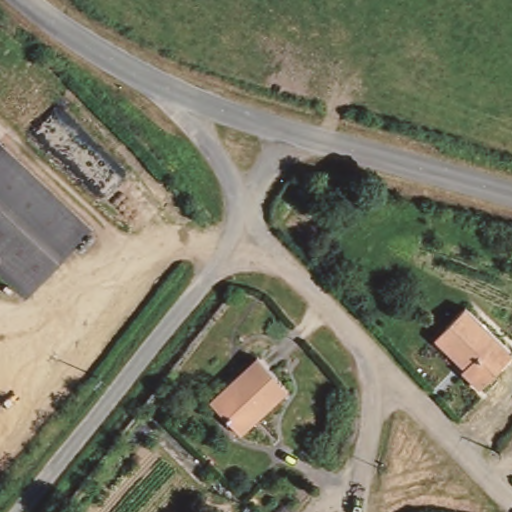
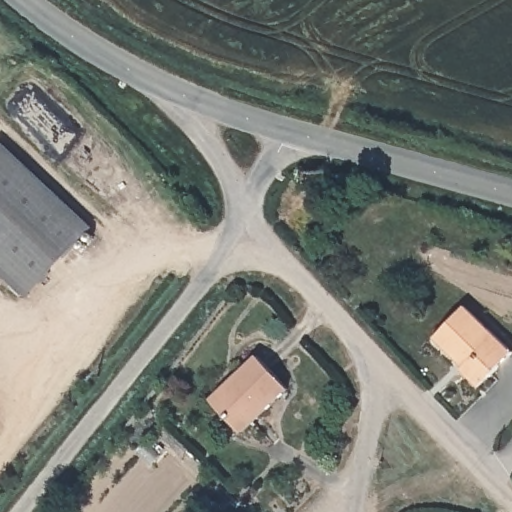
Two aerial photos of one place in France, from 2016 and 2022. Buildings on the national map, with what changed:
unchanged [(21,299),(0,278),(0,146),(87,230),(21,299)]
unchanged [(462,309),(512,358),(512,359),(478,392),(460,374),(465,369),(434,337),(462,309)]
unchanged [(283,395),(238,434),(210,400),(257,360),(283,395)]

